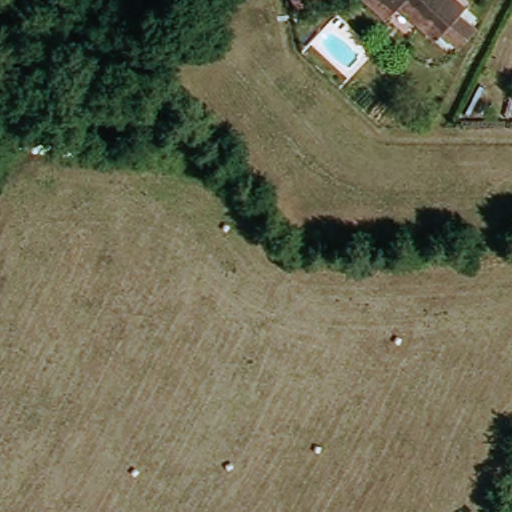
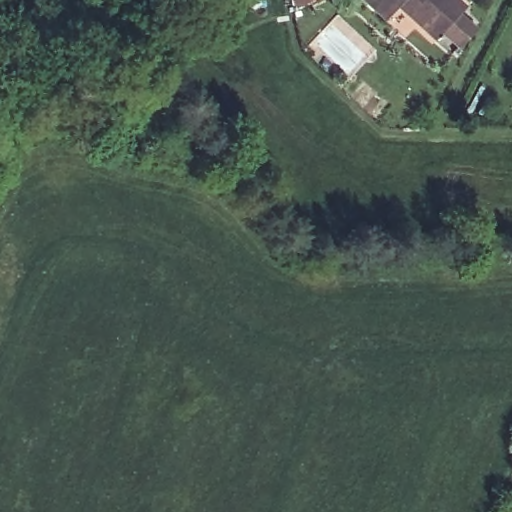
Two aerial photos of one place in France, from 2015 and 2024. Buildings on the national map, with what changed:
unchanged [(440,36),(433,43),(395,6),(385,18),(365,0),(451,0),(464,12),(455,21),(470,36),(455,51),(440,36)]

